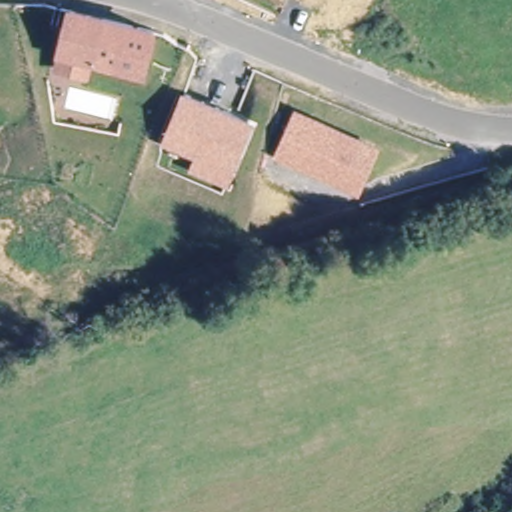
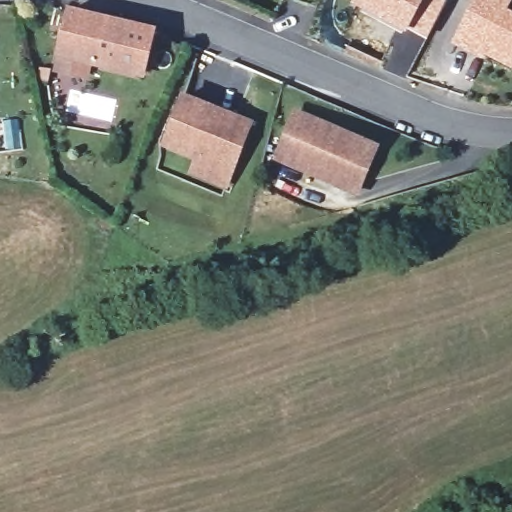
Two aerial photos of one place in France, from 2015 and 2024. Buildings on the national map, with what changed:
new [(351,5),(353,0),(425,0),(407,35),(351,5)]
new [(474,0),(512,0),(512,1),(508,10),(512,12),(512,68),(511,70),(484,56),(482,60),(451,43),(474,0)]
unchanged [(155,31),(144,78),(62,56),(72,13),(155,31)]
unchanged [(196,161),(163,148),(182,101),(247,128),(229,175),(223,189),(190,175),(196,161)]
unchanged [(275,162),(295,117),(372,151),(361,178),(353,196),(321,182),(275,162)]

